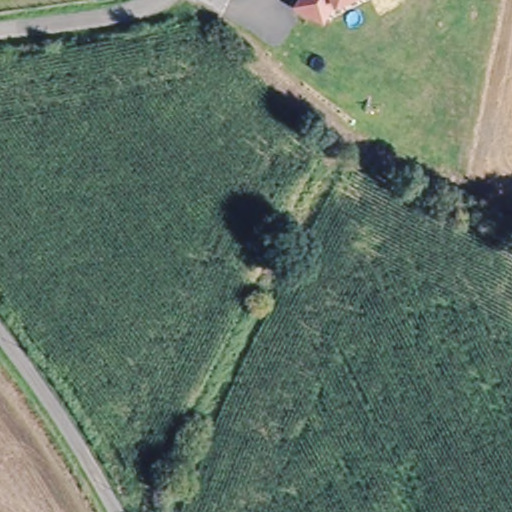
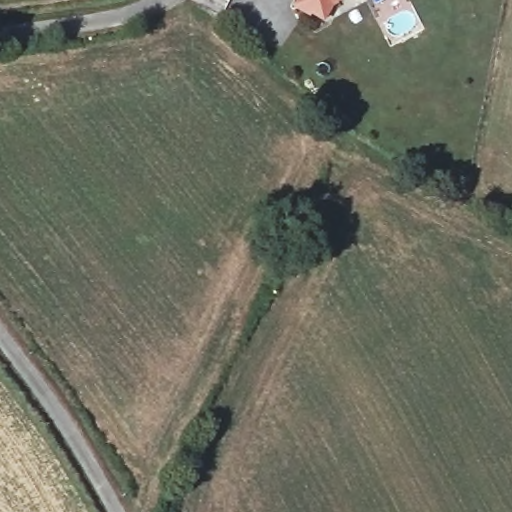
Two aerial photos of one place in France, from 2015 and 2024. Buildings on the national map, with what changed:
unchanged [(333,9),(325,23),(312,16),(311,18),(297,10),(303,0),(350,0),(333,9)]

